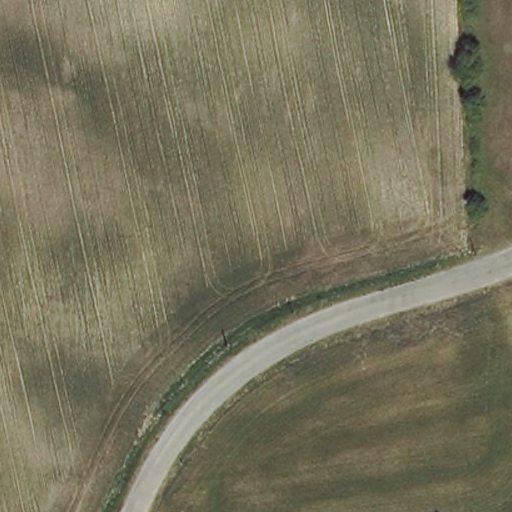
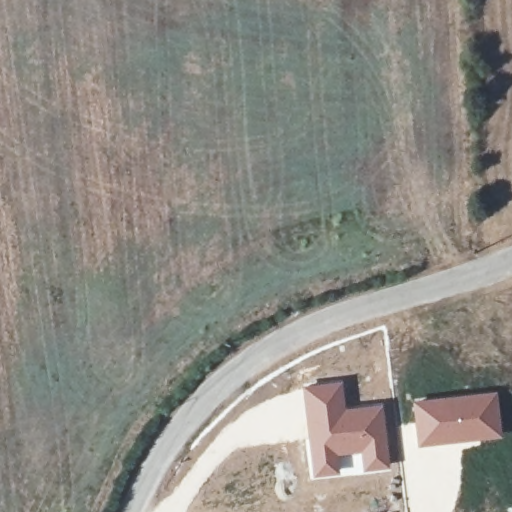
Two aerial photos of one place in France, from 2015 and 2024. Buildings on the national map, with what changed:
new [(343,381),(346,407),(384,403),(390,469),(312,479),(301,386),(343,381)]
new [(497,390),(503,438),(417,448),(411,400),(497,390)]

